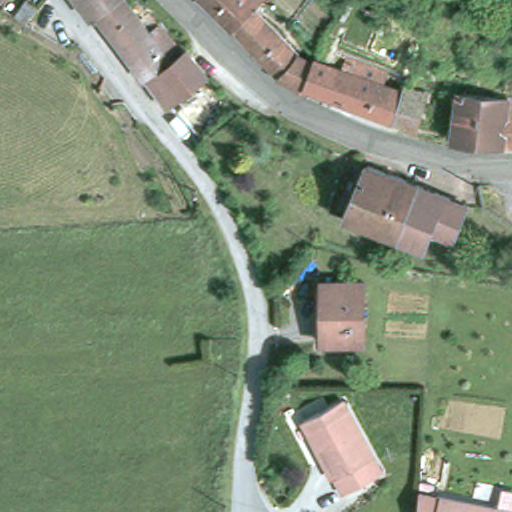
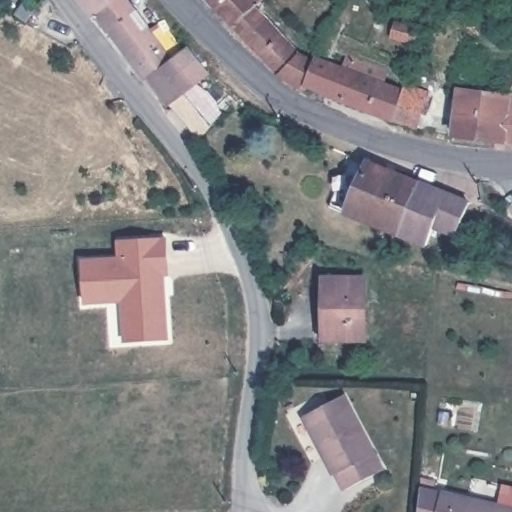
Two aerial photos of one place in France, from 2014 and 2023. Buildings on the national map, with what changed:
unchanged [(2,2),(0,1),(0,0),(3,0),(2,2)]
unchanged [(33,19),(19,12),(27,0),(37,0),(42,4),(33,19)]
unchanged [(97,22),(80,0),(127,0),(126,0),(102,17),(97,22)]
unchanged [(189,95),(171,109),(169,106),(102,17),(126,0),(155,33),(165,25),(189,53),(210,78),(205,83),(214,94),(198,107),(189,95)]
unchanged [(250,12),(232,30),(202,0),(263,0),(250,12)]
unchanged [(292,56),(309,67),(298,90),(277,78),(232,30),(250,12),(292,56)]
unchanged [(418,132),(390,123),(339,105),(305,89),(303,93),(298,90),(309,67),(311,63),(350,77),(352,68),(353,65),(377,73),(373,85),(382,88),(400,95),(424,104),(418,132)]
unchanged [(512,92),(506,139),(460,133),(462,88),(512,91),(512,92)]
unchanged [(512,140),(506,139),(512,92),(512,93),(512,140)]
unchanged [(340,207),(357,165),(362,154),(427,182),(405,235),(340,207)]
unchanged [(475,201),(462,235),(440,227),(432,246),(405,235),(427,182),(475,201)]
new [(169,342),(124,345),(121,304),(85,306),(82,259),(117,257),(117,240),(167,237),(170,278),(165,278),(169,342)]
unchanged [(369,279),(368,338),(328,338),(329,279),(369,279)]
unchanged [(343,402),(382,475),(345,493),(337,476),(332,478),(302,421),(343,402)]
unchanged [(512,512),(419,512),(424,491),(512,507),(512,512)]

